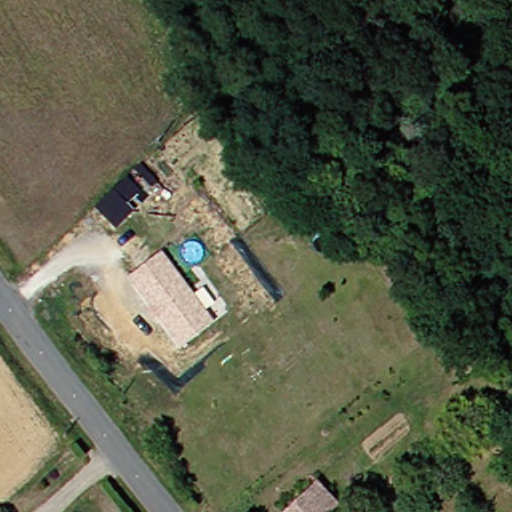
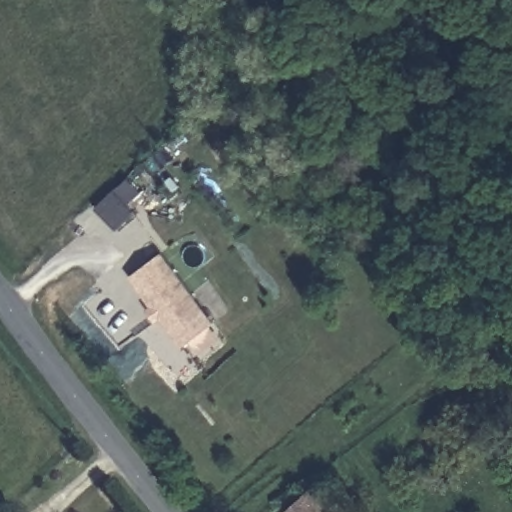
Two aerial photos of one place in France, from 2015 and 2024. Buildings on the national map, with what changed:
unchanged [(186,348),(126,281),(155,255),(217,322),(186,348)]
unchanged [(289,503),(314,483),(326,474),(341,492),(344,495),(332,505),(325,512),(296,512),(289,503)]

